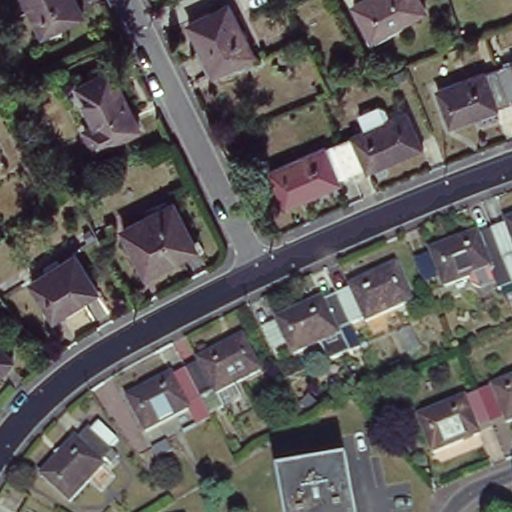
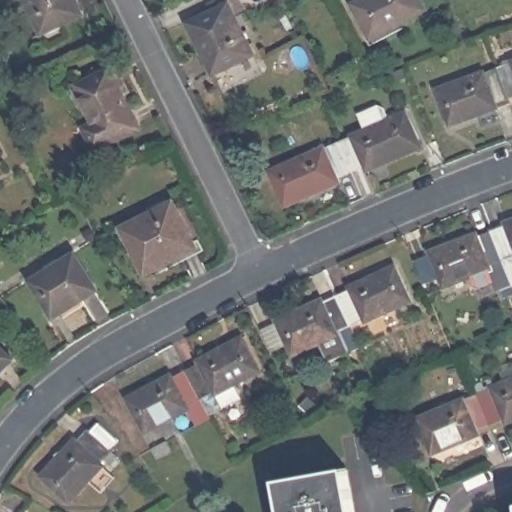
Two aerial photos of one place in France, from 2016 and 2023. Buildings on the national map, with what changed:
unchanged [(44,28),(30,0),(78,0),(82,9),(44,28)]
unchanged [(420,0),(425,9),(372,38),(355,4),(362,0),(420,0)]
unchanged [(230,4),(254,53),(215,73),(190,23),(230,4)]
unchanged [(512,92),(511,92),(500,61),(512,57),(512,92)]
unchanged [(497,97),(500,101),(452,119),(438,83),(485,65),(487,66),(500,61),(511,92),(497,97)]
unchanged [(112,69),(140,127),(95,150),(85,128),(96,122),(79,85),(112,69)]
unchanged [(352,132),(352,129),(407,105),(423,141),(367,165),(365,161),(351,167),(338,137),(352,132)]
unchanged [(338,172),(340,178),(286,201),(270,165),(324,141),(326,143),(338,137),(351,167),(338,172)]
unchanged [(172,202),(195,246),(146,272),(122,227),(172,202)]
unchanged [(512,220),(512,224),(510,221),(512,220)]
unchanged [(512,267),(497,230),(512,224),(512,267)]
unchanged [(495,268),(450,285),(436,250),(483,231),(485,235),(497,230),(512,267),(512,285),(503,288),(495,268)]
unchanged [(75,253),(97,290),(54,317),(31,280),(75,253)]
unchanged [(350,284),(349,281),(395,260),(413,295),(365,317),(364,313),(350,320),(336,290),(350,284)]
unchanged [(349,347),(342,331),(347,329),(344,322),(337,325),(338,328),(293,349),(276,315),(322,294),(325,296),(336,290),(350,320),(360,342),(349,347)]
unchanged [(199,363),(197,360),(242,336),(261,370),(235,384),(241,397),(209,413),(201,398),(186,370),(199,363)]
unchanged [(11,358),(0,370),(0,347),(11,358)]
unchanged [(196,424),(187,409),(146,430),(128,397),(171,374),(173,377),(186,370),(201,398),(209,413),(211,416),(196,424)]
unchanged [(498,381),(512,375),(512,417),(509,412),(495,418),(484,389),(498,383),(498,381)]
unchanged [(482,423),(485,428),(437,448),(423,412),(468,393),(470,394),(484,389),(495,418),(482,423)]
unchanged [(66,447),(70,449),(80,439),(82,440),(89,432),(107,449),(100,457),(110,466),(102,474),(95,467),(91,471),(94,473),(60,510),(31,484),(66,447)]
unchanged [(167,438),(174,450),(158,459),(151,447),(167,438)]
unchanged [(351,466),(359,512),(289,512),(283,478),(351,466)]

